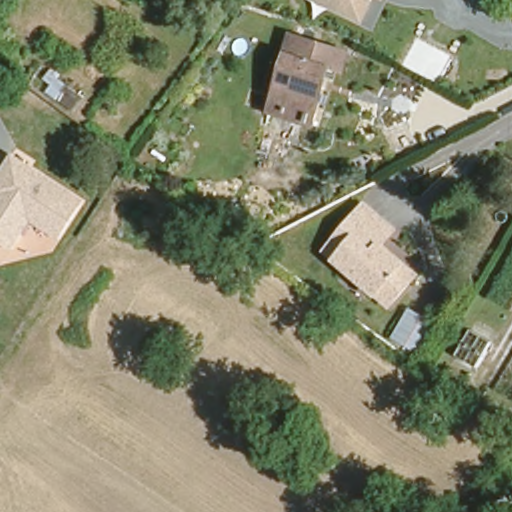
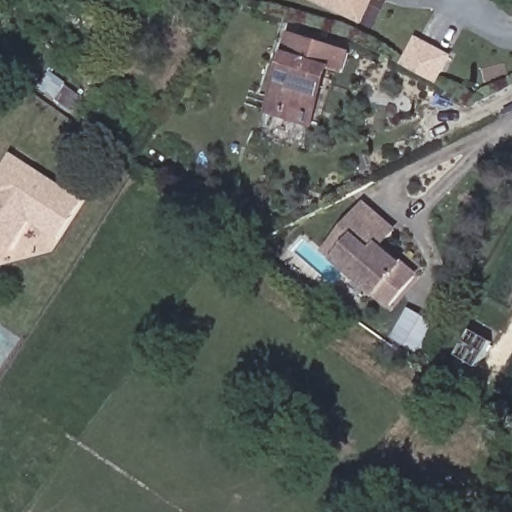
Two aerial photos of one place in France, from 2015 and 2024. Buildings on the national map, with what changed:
unchanged [(364,23),(310,0),(375,0),(364,23)]
unchanged [(385,4),(375,0),(387,0),(385,4)]
unchanged [(274,91),(293,29),(347,47),(340,65),(324,60),(317,80),(313,79),(305,103),(308,104),(304,115),(287,110),(269,105),(274,91)]
new [(401,64),(416,36),(453,55),(438,83),(401,64)]
unchanged [(36,224),(29,234),(26,232),(14,251),(0,242),(0,173),(14,153),(85,200),(59,241),(36,224)]
unchanged [(384,246),(406,266),(418,277),(392,308),(377,297),(333,260),(321,249),(365,200),(400,228),(384,246)]
unchanged [(409,306),(449,328),(428,362),(388,334),(409,306)]
unchanged [(479,368),(457,356),(473,330),(494,341),(479,368)]

